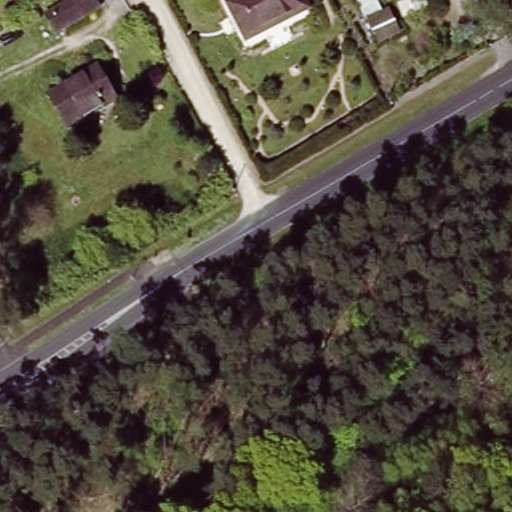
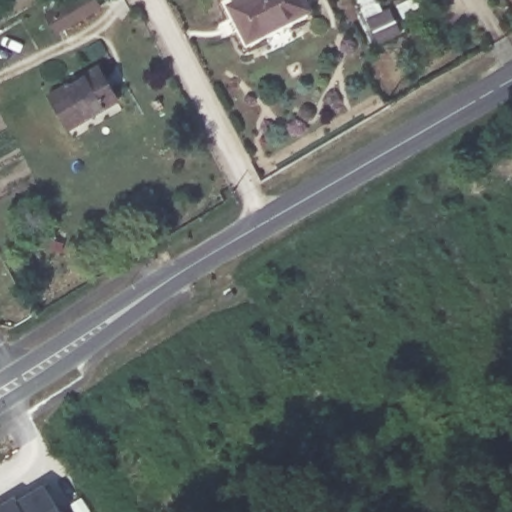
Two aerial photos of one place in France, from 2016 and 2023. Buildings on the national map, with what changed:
unchanged [(56,36),(43,15),(68,0),(93,0),(99,10),(56,36)]
unchanged [(243,41),(227,6),(239,0),(301,0),(305,10),(243,41)]
unchanged [(410,36),(387,50),(373,29),(395,15),(410,36)]
unchanged [(118,103),(73,131),(51,96),(98,69),(118,103)]
new [(12,494),(15,499),(42,483),(59,512),(0,512),(0,502),(12,494)]

